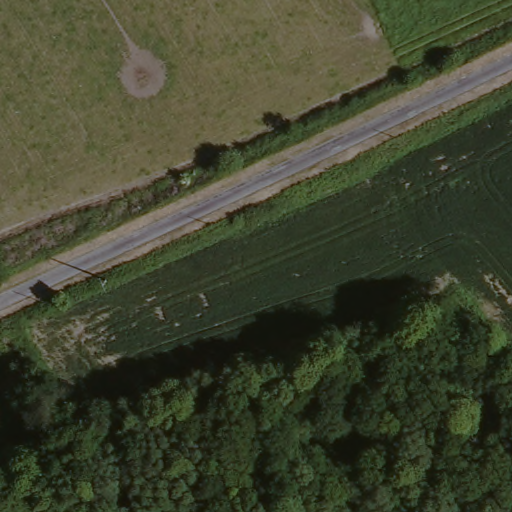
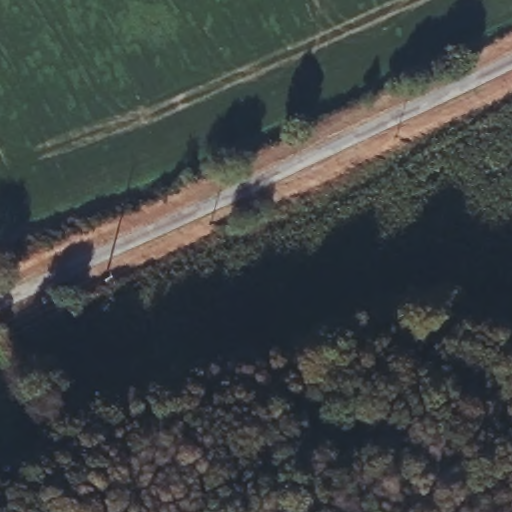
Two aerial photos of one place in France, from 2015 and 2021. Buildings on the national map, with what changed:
[]

